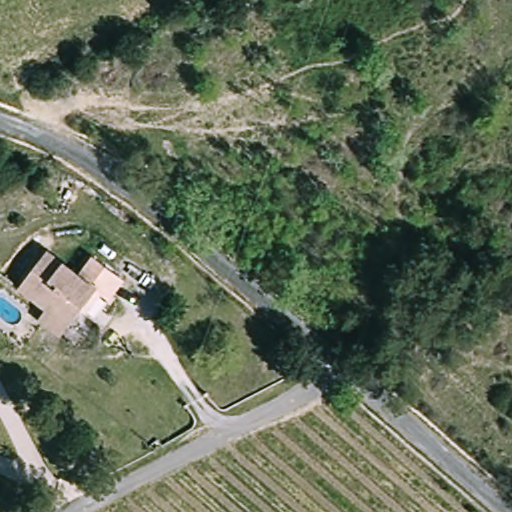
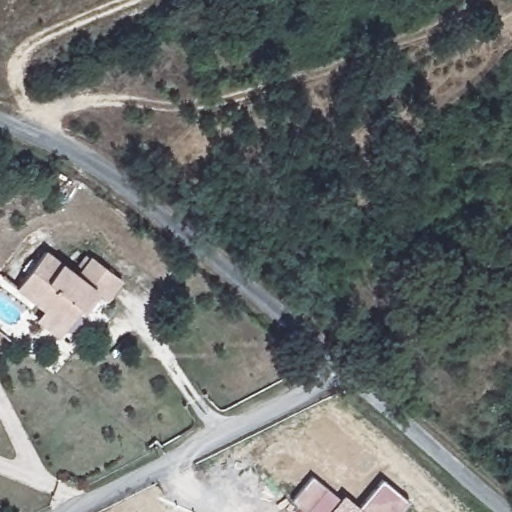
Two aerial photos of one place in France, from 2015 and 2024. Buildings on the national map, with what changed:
unchanged [(15,290),(46,250),(78,274),(91,256),(124,281),(109,302),(101,296),(86,316),(79,311),(66,328),(58,338),(36,320),(43,310),(15,290)]
new [(313,475),(343,500),(345,498),(356,507),(380,477),(412,501),(402,512),(305,512),(291,500),(313,475)]

